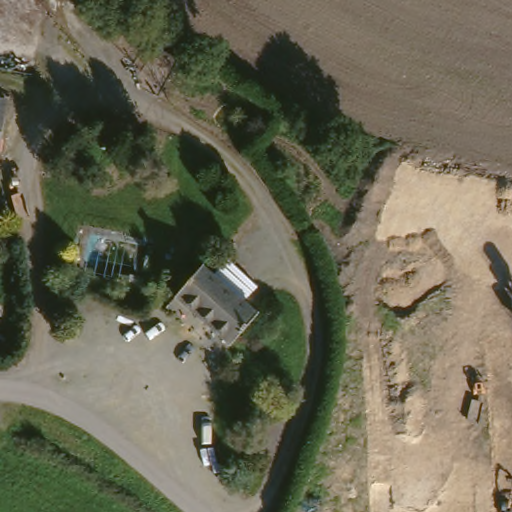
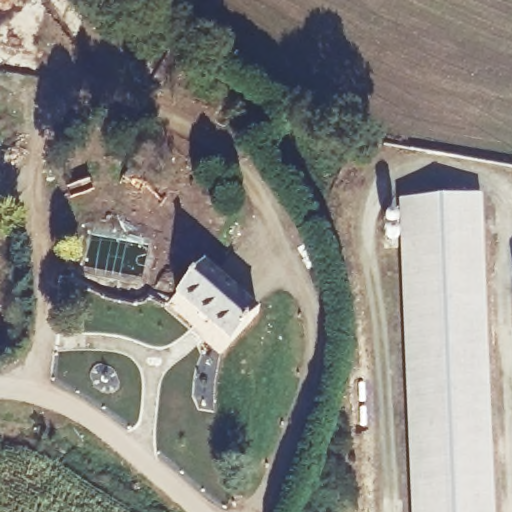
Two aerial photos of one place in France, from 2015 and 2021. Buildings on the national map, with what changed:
demolished [(53,0),(41,70),(0,63),(0,0),(53,0)]
unchanged [(0,114),(0,100),(2,100),(0,114)]
new [(399,202),(480,199),(494,512),(412,512),(399,202)]
unchanged [(250,319),(223,349),(167,303),(195,271),(250,319)]

